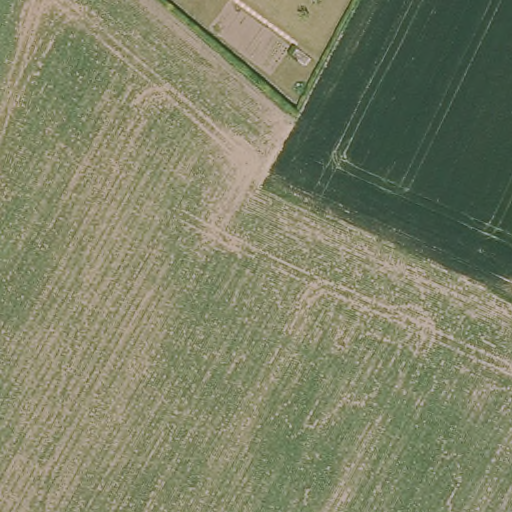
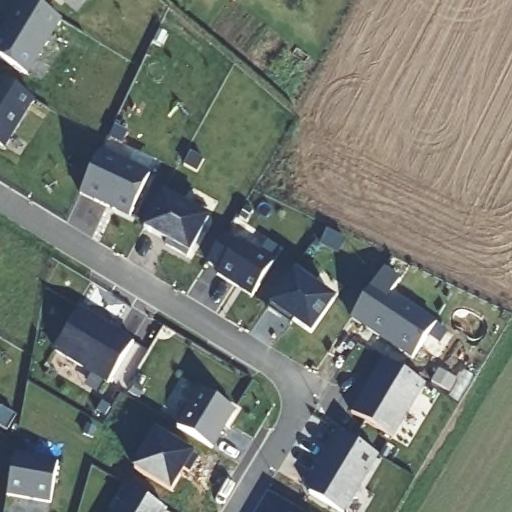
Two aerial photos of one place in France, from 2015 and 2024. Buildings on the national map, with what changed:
new [(28,76),(0,60),(0,33),(20,0),(25,0),(61,22),(28,76)]
new [(34,103),(5,150),(0,147),(0,81),(34,103)]
new [(130,220),(80,196),(101,152),(151,175),(130,220)]
new [(210,220),(191,255),(143,229),(163,192),(210,220)]
new [(224,244),(238,253),(240,249),(272,269),(252,301),(219,280),(222,276),(208,267),(224,244)]
new [(297,275),(315,287),(312,291),(333,307),(310,338),(284,319),(280,323),(268,314),(297,275)]
new [(397,286),(387,300),(433,330),(410,364),(352,323),(382,277),(397,286)]
new [(82,316),(132,346),(108,388),(57,354),(82,316)]
new [(383,366),(422,389),(391,441),(352,417),(383,366)]
new [(234,415),(212,453),(178,432),(200,396),(234,415)]
new [(195,455),(172,496),(132,472),(157,431),(195,455)]
new [(376,461),(345,512),(331,512),(307,495),(338,439),(376,461)]
new [(50,506),(7,500),(14,455),(58,463),(50,506)]
new [(117,512),(128,491),(162,512),(117,512)]

